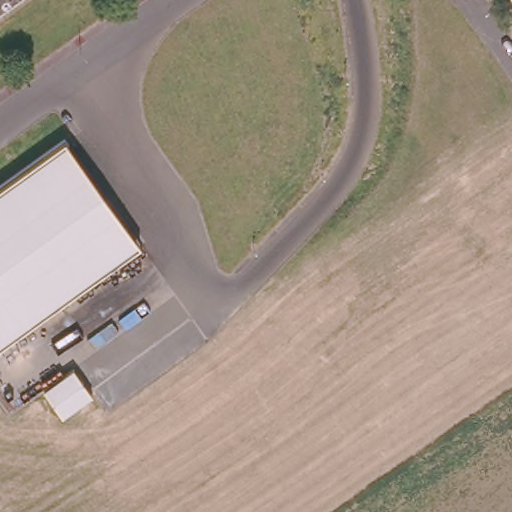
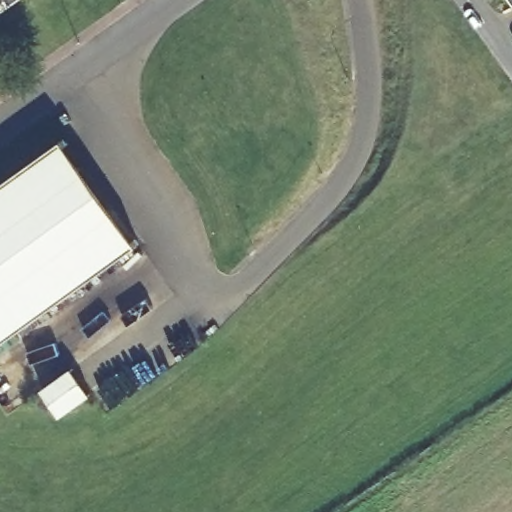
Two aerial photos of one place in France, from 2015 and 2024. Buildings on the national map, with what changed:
unchanged [(0,19),(0,0),(29,0),(0,19)]
unchanged [(0,342),(0,184),(65,137),(141,244),(0,342)]
unchanged [(93,399),(63,421),(45,394),(75,372),(93,399)]

